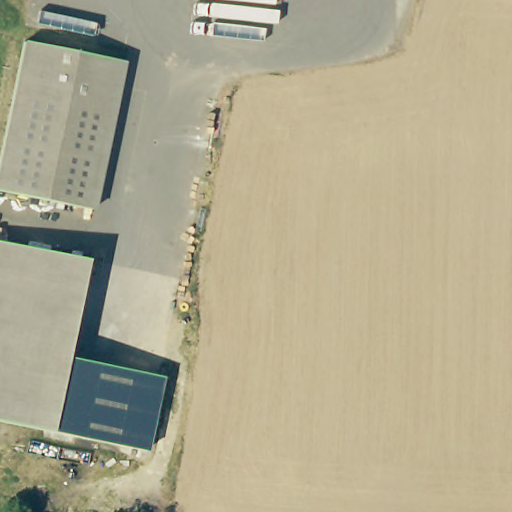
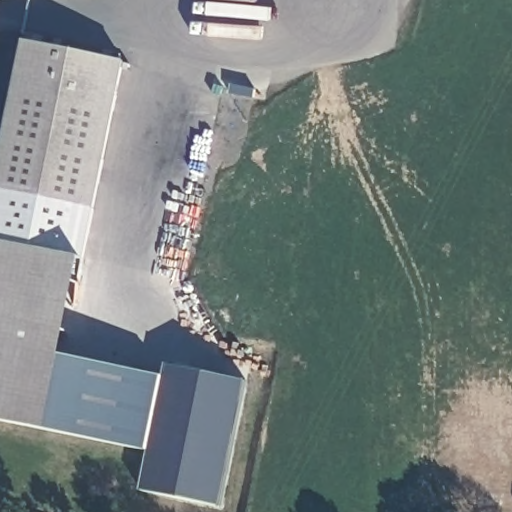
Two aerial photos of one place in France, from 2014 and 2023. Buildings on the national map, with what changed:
unchanged [(94,206),(0,186),(0,166),(27,38),(125,59),(94,206)]
unchanged [(63,353),(162,374),(146,448),(47,426),(0,416),(0,237),(84,255),(63,353)]
new [(166,363),(245,379),(219,505),(143,490),(146,448),(162,374),(166,363)]

